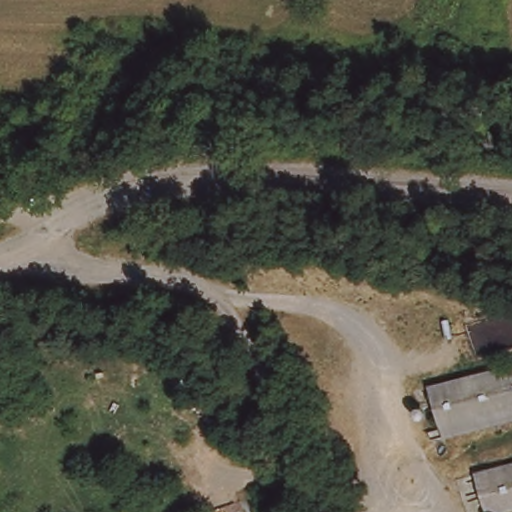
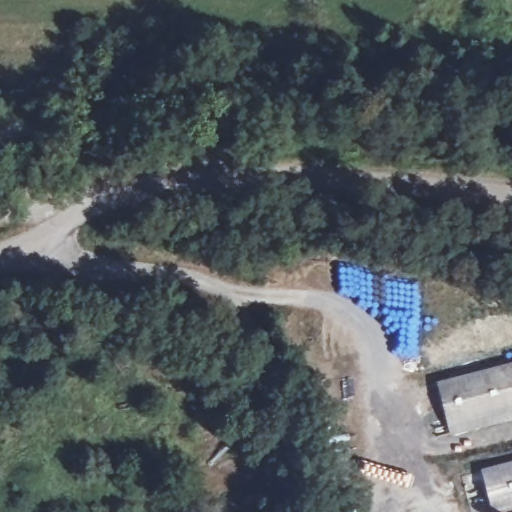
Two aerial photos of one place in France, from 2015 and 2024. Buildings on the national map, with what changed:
unchanged [(445,435),(433,392),(512,368),(512,415),(445,435)]
unchanged [(507,512),(494,512),(484,472),(512,464),(512,511),(507,512)]

